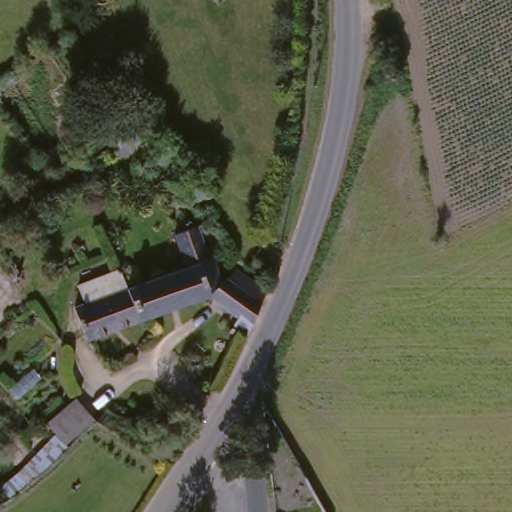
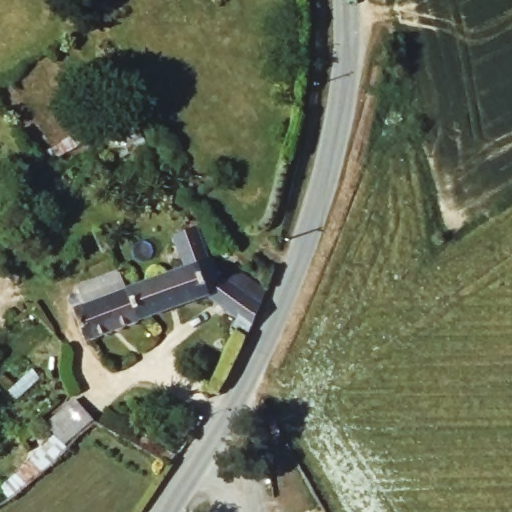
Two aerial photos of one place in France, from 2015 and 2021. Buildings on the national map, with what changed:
unchanged [(186,267),(174,233),(198,226),(208,259),(212,257),(221,282),(224,278),(227,280),(234,268),(266,290),(251,327),(208,295),(141,319),(138,320),(126,288),(186,267)]
unchanged [(119,270),(126,288),(138,320),(86,340),(74,308),(84,304),(78,286),(119,270)]
unchanged [(93,420),(64,444),(46,424),(74,399),(93,420)]

